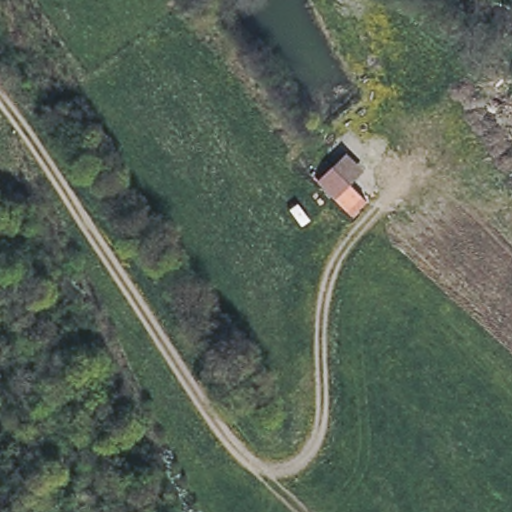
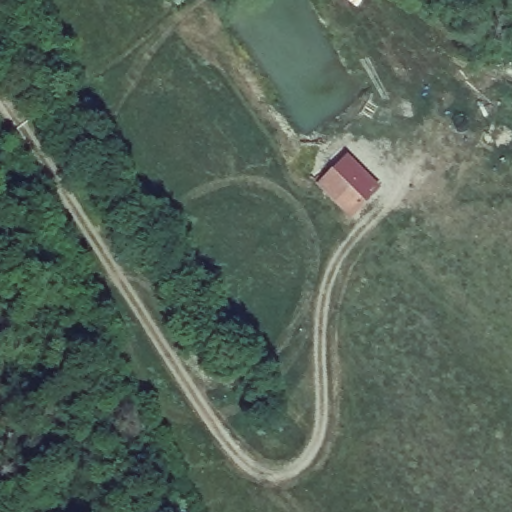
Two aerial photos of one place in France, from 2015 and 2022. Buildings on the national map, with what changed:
unchanged [(366,172),(335,201),(317,183),(347,154),(366,172)]

